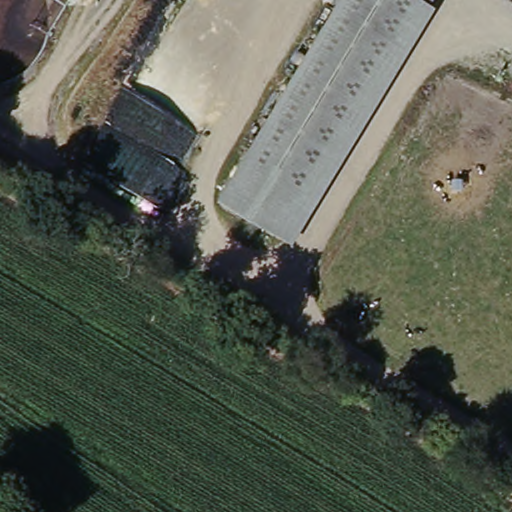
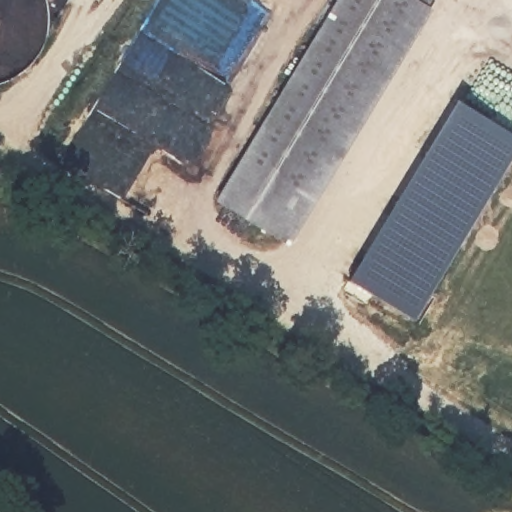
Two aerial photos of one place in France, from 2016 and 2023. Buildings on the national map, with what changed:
unchanged [(425,6),(285,251),(212,206),(279,93),(336,0),(415,0),(425,6)]
unchanged [(425,6),(415,0),(429,0),(425,6)]
new [(461,100),(512,131),(512,164),(418,321),(353,282),(461,100)]

